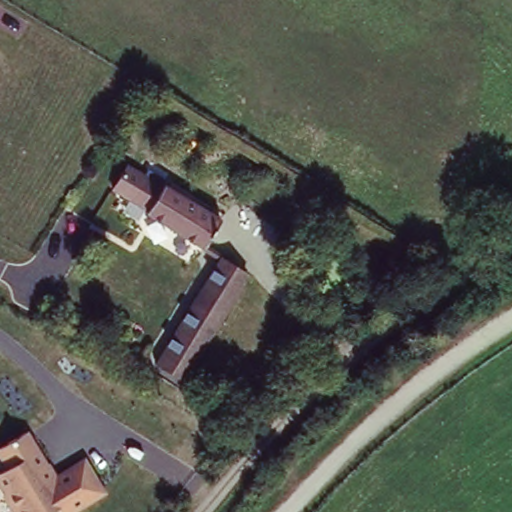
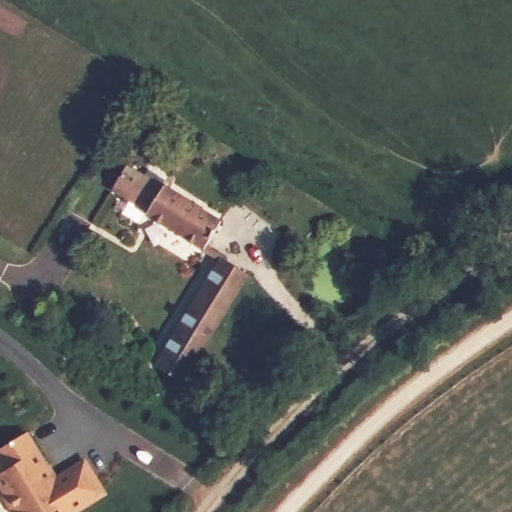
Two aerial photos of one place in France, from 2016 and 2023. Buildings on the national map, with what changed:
unchanged [(165,183),(167,180),(228,217),(209,245),(150,209),(152,206),(133,194),(119,186),(116,185),(131,161),(134,163),(148,172),(165,183)]
unchanged [(220,257),(245,272),(186,378),(160,360),(220,257)]
unchanged [(50,461),(57,474),(85,457),(108,494),(76,512),(59,512),(57,511),(54,512),(20,512),(0,476),(0,470),(8,464),(0,451),(0,446),(30,429),(49,462),(50,461)]

